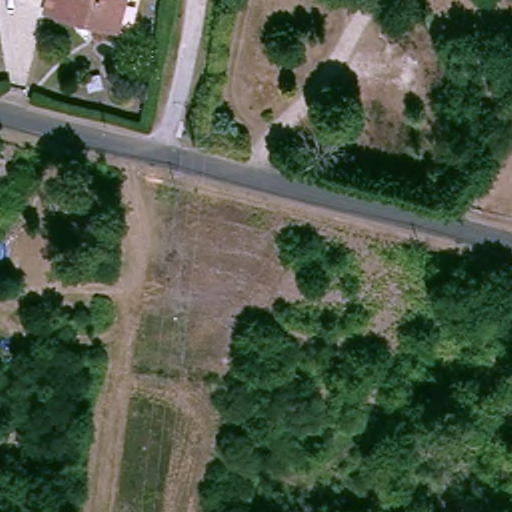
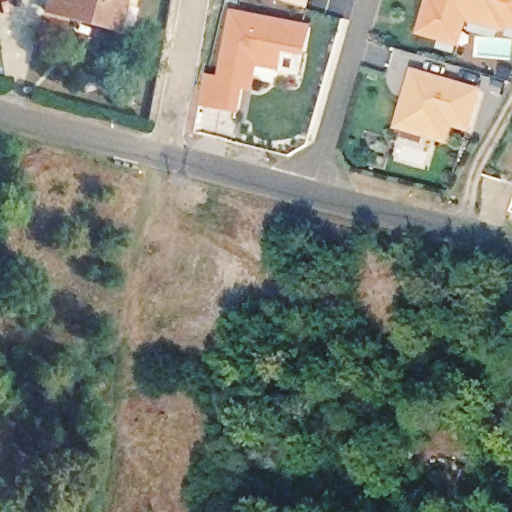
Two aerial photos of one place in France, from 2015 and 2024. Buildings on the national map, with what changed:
unchanged [(52,19),(56,0),(125,0),(118,31),(52,19)]
new [(278,0),(311,0),(309,9),(278,0)]
new [(509,27),(508,33),(469,21),(462,47),(418,35),(428,0),(512,0),(512,28),(509,27)]
new [(244,91),(241,114),(203,109),(208,77),(222,78),(234,12),(313,27),(302,78),(280,75),(259,68),(256,92),(244,91)]
new [(397,131),(413,71),(483,90),(469,134),(454,130),(450,147),(397,131)]

